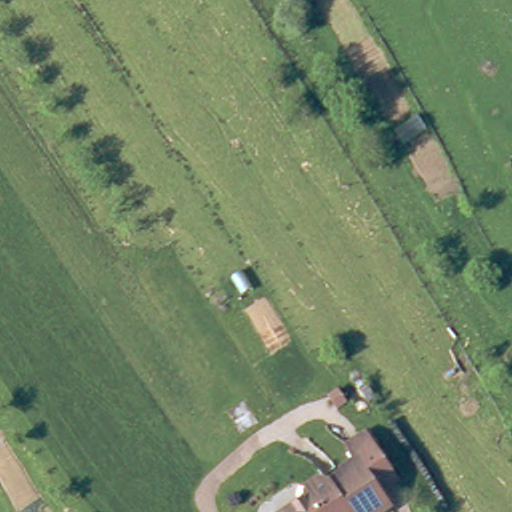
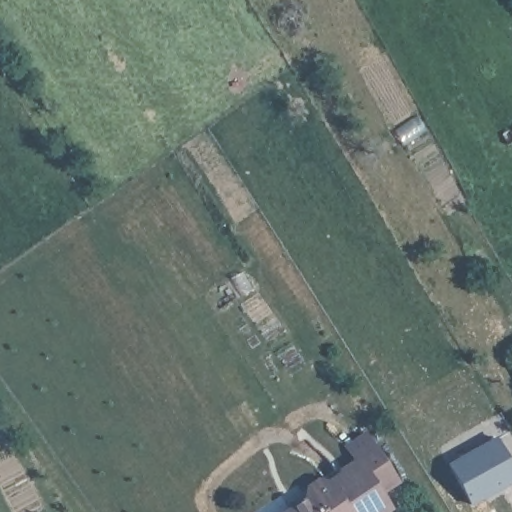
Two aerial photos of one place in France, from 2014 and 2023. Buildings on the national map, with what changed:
unchanged [(341,407),(333,412),(325,400),(333,395),(341,407)]
unchanged [(303,487),(315,480),(325,483),(340,473),(338,471),(353,460),(342,446),(361,434),(393,481),(376,493),(386,508),(380,512),(284,512),(285,511),(300,500),(303,487)]
new [(512,463),(512,482),(473,503),(450,465),(498,438),(512,463)]

